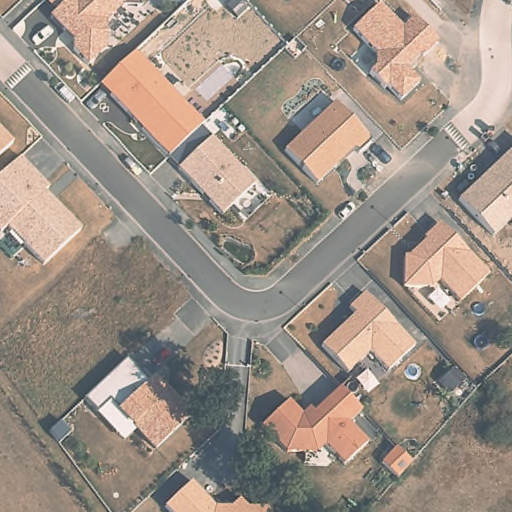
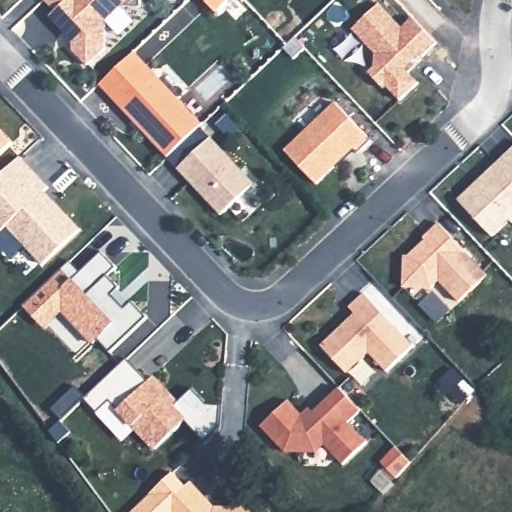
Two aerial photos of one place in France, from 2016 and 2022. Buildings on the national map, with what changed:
unchanged [(141,6),(122,7),(104,22),(105,52),(88,65),(71,50),(72,41),(50,18),(54,11),(44,1),(46,0),(142,0),(141,6)]
unchanged [(412,18),(439,44),(422,58),(420,56),(407,71),(420,83),(400,101),(386,87),(383,90),(369,73),(376,66),(375,53),(354,30),(380,5),(403,26),(412,18)]
unchanged [(203,123),(199,129),(253,185),(221,216),(100,86),(134,50),(203,123)]
unchanged [(371,139),(339,168),(335,165),(317,182),(284,148),(334,100),(371,139)]
unchanged [(0,154),(0,128),(13,141),(0,154)]
unchanged [(512,148),(512,221),(511,220),(493,237),(458,199),(512,148)]
unchanged [(43,191),(80,229),(43,265),(6,227),(0,234),(0,176),(20,156),(50,185),(43,191)]
unchanged [(489,274),(460,301),(440,281),(433,287),(403,287),(403,255),(407,255),(422,240),(422,235),(439,220),(489,274)]
new [(111,353),(97,340),(92,344),(61,313),(44,328),(22,306),(70,261),(80,272),(102,251),(117,267),(108,276),(121,288),(112,296),(124,308),(132,300),(149,317),(111,353)]
unchanged [(415,347),(388,372),(370,353),(346,374),(320,344),(353,313),(347,306),(364,290),(415,347)]
unchanged [(153,450),(110,403),(97,413),(83,398),(130,355),(189,417),(153,450)]
unchanged [(361,411),(349,423),(367,443),(342,466),(324,447),(316,455),(286,455),(261,427),(288,401),(302,415),(309,408),(313,412),(339,386),(361,411)]
unchanged [(269,509),(269,512),(165,512),(161,508),(190,481),(215,508),(269,509)]

